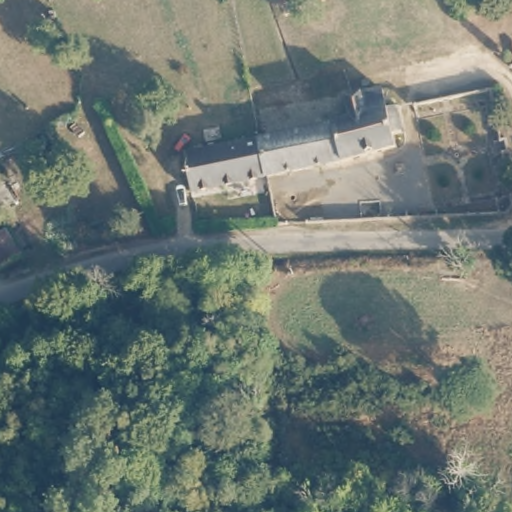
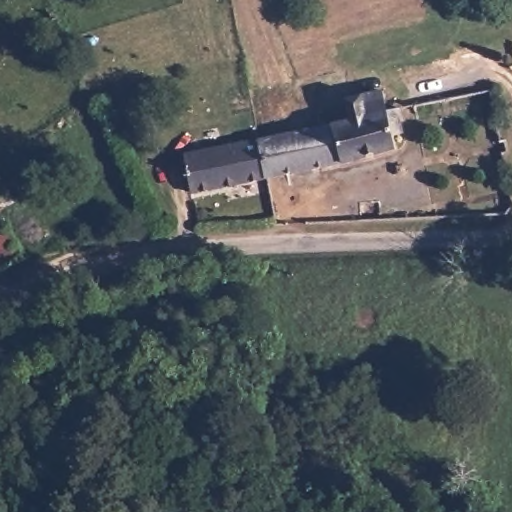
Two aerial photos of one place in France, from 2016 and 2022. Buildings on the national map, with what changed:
unchanged [(253,139),(348,118),(343,100),(380,91),(390,147),(343,159),(260,177),(253,139)]
unchanged [(187,192),(179,154),(253,139),(260,177),(187,192)]
unchanged [(0,207),(0,180),(12,199),(0,207)]
unchanged [(0,267),(0,240),(12,233),(26,257),(2,269),(0,267)]

